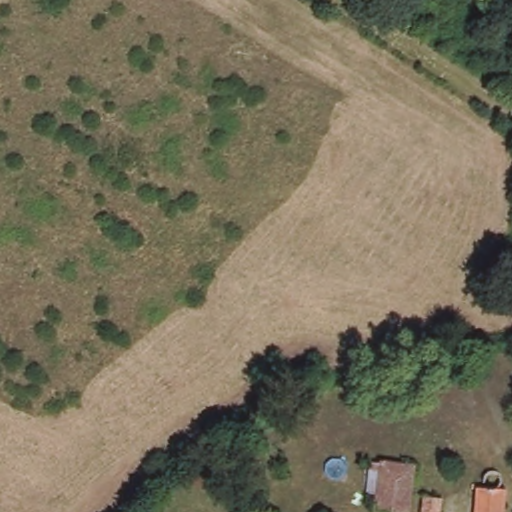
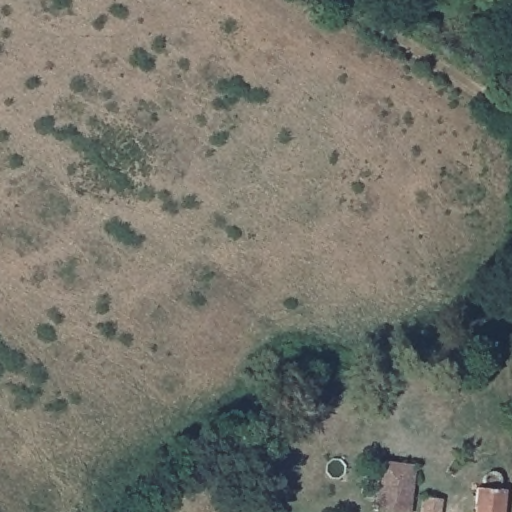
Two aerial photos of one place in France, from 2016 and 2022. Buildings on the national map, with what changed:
unchanged [(394,462),(415,465),(410,493),(407,512),(365,512),(374,458),(394,462)]
unchanged [(484,478),(489,472),(494,472),(500,473),(504,480),(505,493),(512,493),(509,512),(474,512),(475,507),(477,488),(483,490),(484,478)]
unchanged [(443,512),(426,512),(428,501),(444,502),(443,512)]

